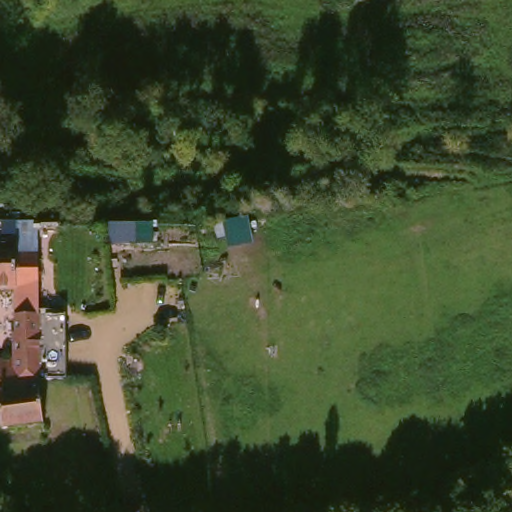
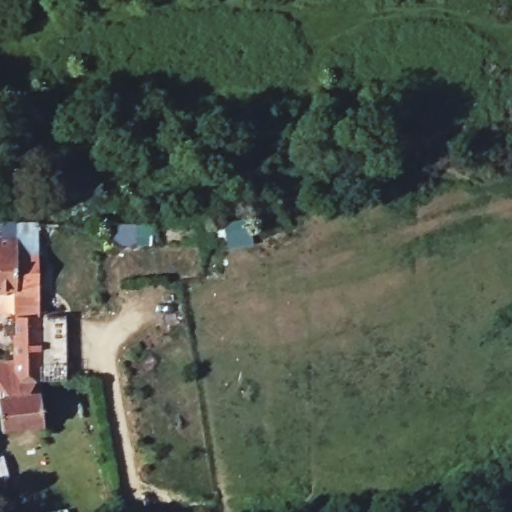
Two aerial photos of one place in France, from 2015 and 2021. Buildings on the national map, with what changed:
unchanged [(21,230),(22,251),(44,251),(46,284),(8,284),(0,284),(0,230),(21,230)]
unchanged [(70,367),(49,368),(51,343),(51,318),(52,307),(69,307),(70,367)]
unchanged [(24,338),(26,338),(26,318),(51,318),(51,343),(49,368),(49,374),(23,377),(23,356),(24,338)]
unchanged [(54,419),(11,423),(8,392),(2,393),(2,379),(23,377),(49,374),(51,397),(54,419)]

